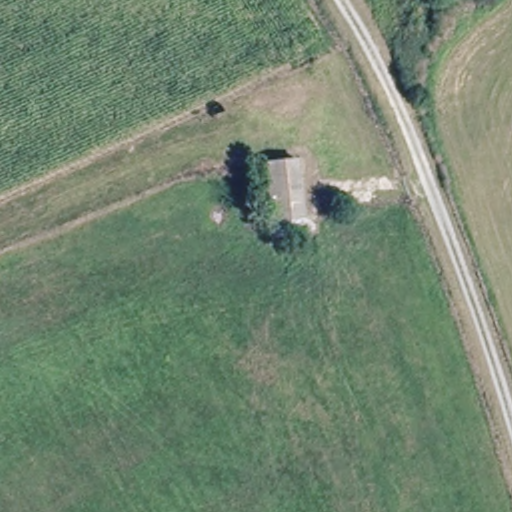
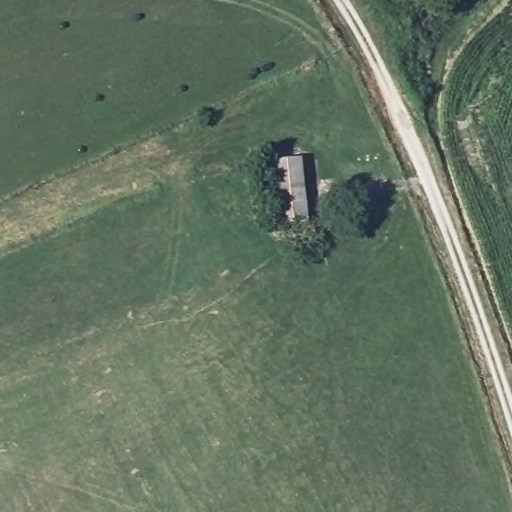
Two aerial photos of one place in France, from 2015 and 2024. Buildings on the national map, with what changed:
unchanged [(300,160),(301,224),(263,225),(259,164),(300,160)]

